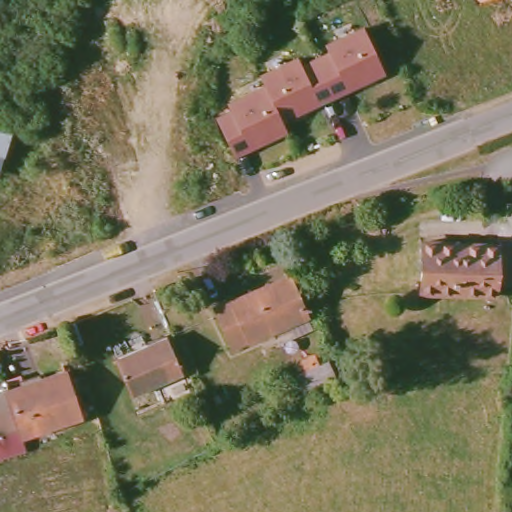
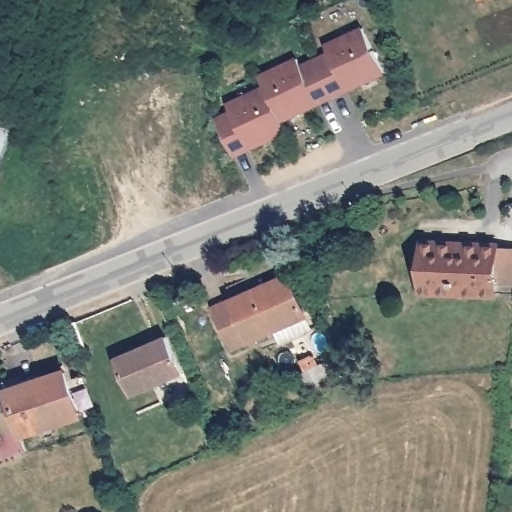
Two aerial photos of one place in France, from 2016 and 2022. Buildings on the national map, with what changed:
unchanged [(478,0),(482,0),(478,1),(478,0)]
unchanged [(329,56),(325,47),(362,29),(384,72),(365,81),(363,77),(330,93),(315,63),(329,56)]
unchanged [(330,93),(298,110),(300,114),(282,123),(265,90),(260,80),(297,61),(302,70),(315,63),(330,93)]
unchanged [(282,123),(288,134),(270,144),(267,139),(234,155),(219,125),(233,118),(228,109),(265,90),(282,123)]
unchanged [(8,155),(0,154),(0,124),(10,126),(8,155)]
unchanged [(415,295),(417,240),(497,244),(495,299),(415,295)]
unchanged [(275,337),(269,325),(227,342),(210,302),(283,270),(301,311),(307,323),(275,337)]
unchanged [(131,395),(116,358),(167,336),(182,373),(131,395)]
unchanged [(302,360),(313,355),(318,365),(328,360),(338,383),(307,398),(296,375),(307,370),(302,360)]
unchanged [(75,370),(85,403),(68,409),(70,411),(11,430),(8,421),(0,397),(0,384),(55,366),(57,375),(75,370)]
unchanged [(11,430),(17,447),(0,452),(0,397),(8,421),(11,430)]

